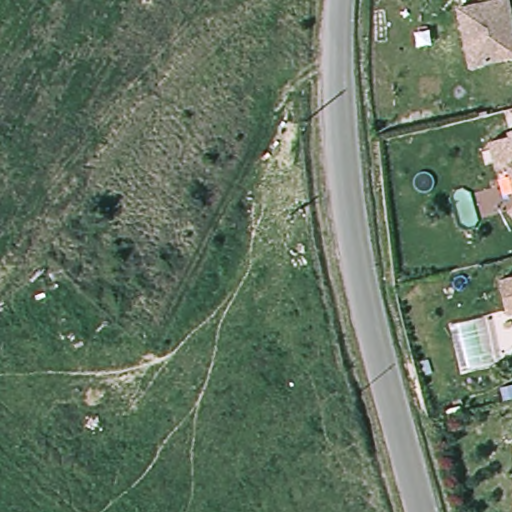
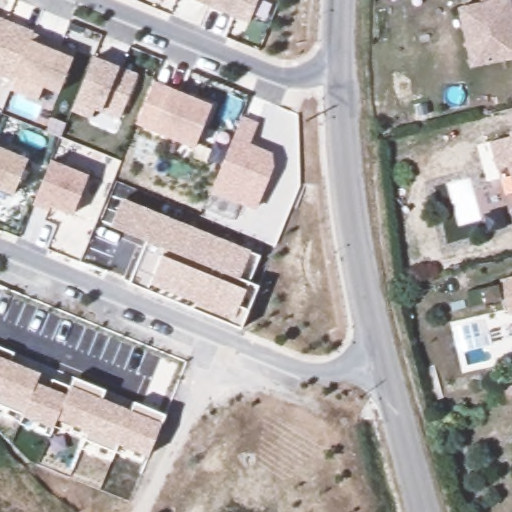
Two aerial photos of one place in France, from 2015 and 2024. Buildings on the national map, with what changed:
new [(205,2),(201,0),(206,0),(205,2)]
new [(205,2),(206,0),(255,0),(247,20),(205,2)]
unchanged [(460,10),(482,4),(482,0),(510,0),(512,10),(512,59),(472,68),(460,10)]
new [(45,25),(26,71),(0,61),(0,6),(45,25)]
new [(26,71),(45,25),(61,32),(58,39),(68,43),(71,36),(88,44),(71,85),(55,78),(49,92),(22,81),(26,71)]
new [(91,54),(135,72),(117,115),(93,104),(89,114),(70,105),(91,54)]
new [(212,105),(195,145),(152,130),(137,123),(155,80),(170,87),(212,105)]
new [(250,143),(272,152),(274,166),(257,210),(212,191),(243,115),(260,122),(250,143)]
unchanged [(500,168),(493,141),(512,136),(512,165),(500,168)]
new [(13,188),(0,182),(0,146),(25,156),(13,188)]
new [(48,157),(86,173),(70,210),(47,201),(45,207),(33,199),(48,157)]
new [(252,250),(251,251),(261,255),(251,281),(261,286),(243,327),(131,283),(148,240),(111,224),(123,197),(252,250)]
unchanged [(510,314),(508,303),(502,279),(512,277),(512,314),(510,314)]
new [(50,386),(54,378),(72,385),(75,377),(105,390),(101,398),(130,410),(135,401),(165,414),(162,422),(148,455),(118,444),(116,451),(84,438),(88,430),(58,420),(55,427),(22,415),(23,411),(0,402),(0,346),(14,352),(11,360),(41,372),(37,381),(50,386)]

